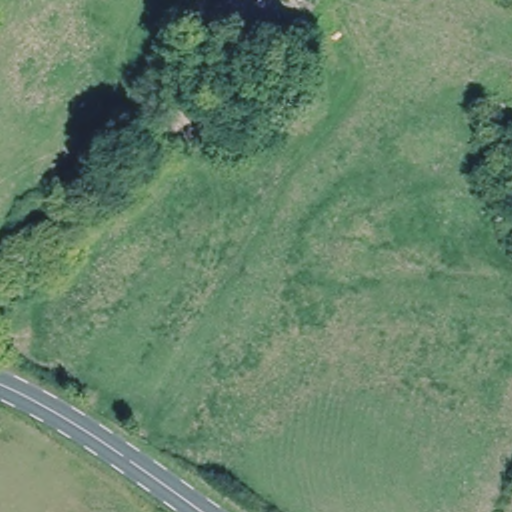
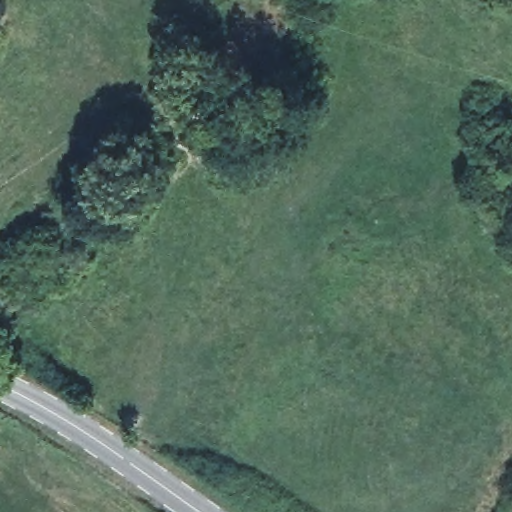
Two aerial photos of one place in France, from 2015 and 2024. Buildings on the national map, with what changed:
[]

